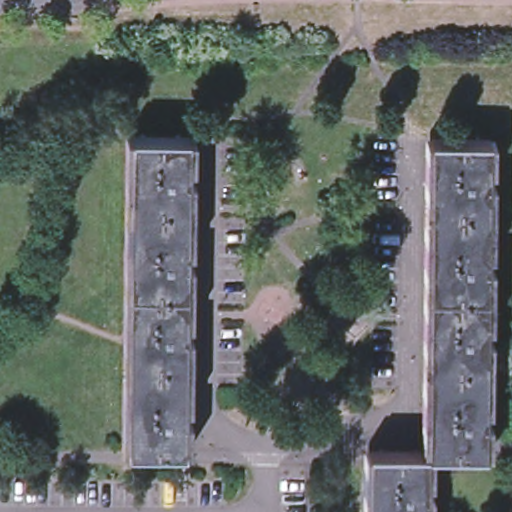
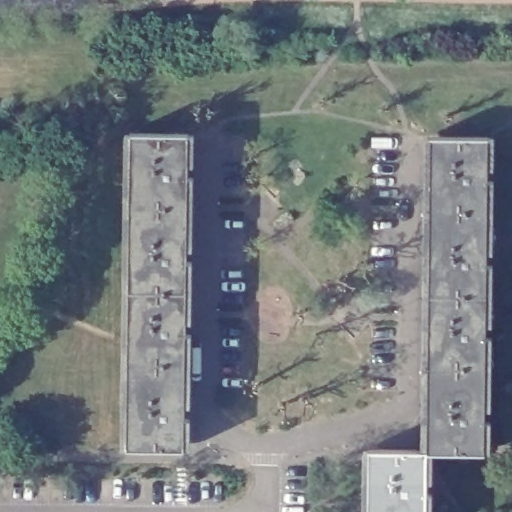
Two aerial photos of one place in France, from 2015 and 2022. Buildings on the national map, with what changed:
unchanged [(132,444),(135,130),(193,130),(190,445),(132,444)]
unchanged [(486,453),(428,453),(428,450),(431,138),(489,138),(490,138),(486,453)]
unchanged [(370,512),(371,450),(428,450),(428,453),(427,512),(370,512)]

